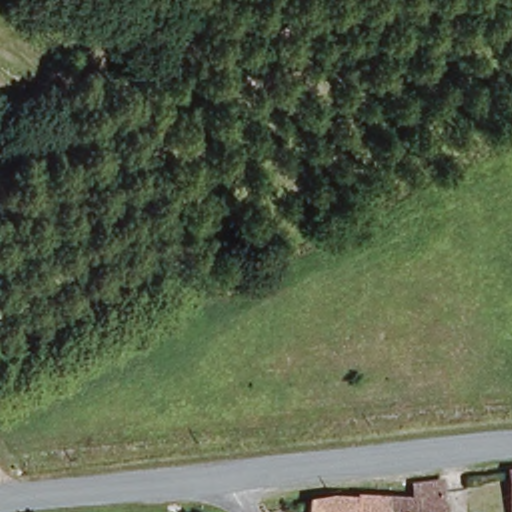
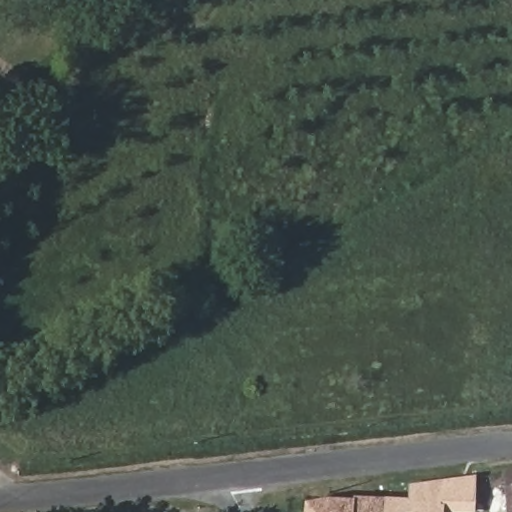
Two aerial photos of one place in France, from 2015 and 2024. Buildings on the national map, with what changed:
unchanged [(512,512),(509,512),(510,476),(512,476),(512,512)]
unchanged [(386,493),(414,496),(418,479),(450,477),(447,512),(384,512),(386,493)]
unchanged [(304,500),(363,491),(386,493),(384,512),(304,512),(304,500)]

